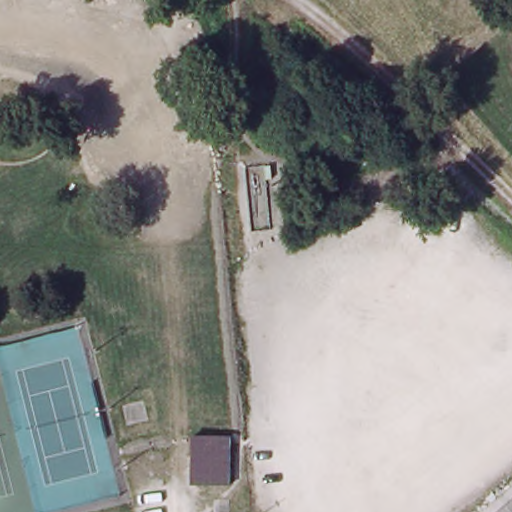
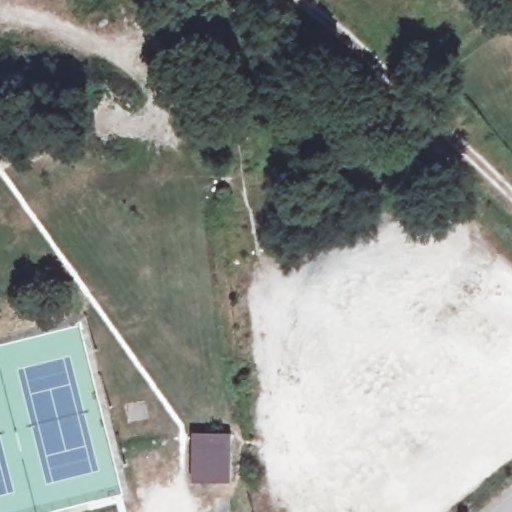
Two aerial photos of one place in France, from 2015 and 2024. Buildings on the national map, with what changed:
unchanged [(235,483),(199,483),(200,433),(235,433),(235,483)]

